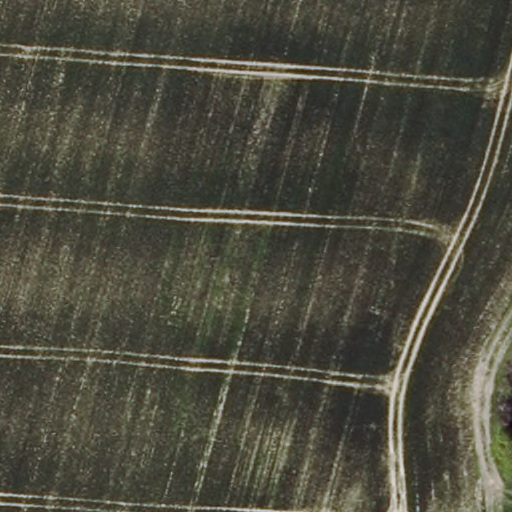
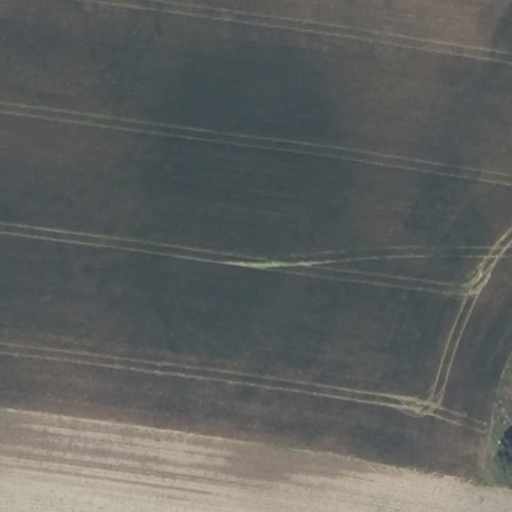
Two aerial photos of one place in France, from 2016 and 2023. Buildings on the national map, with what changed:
[]

